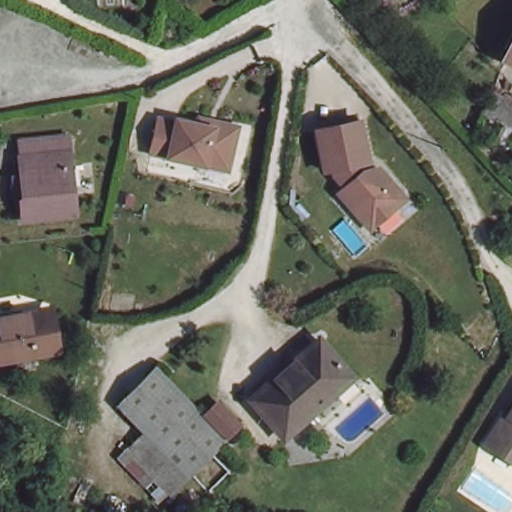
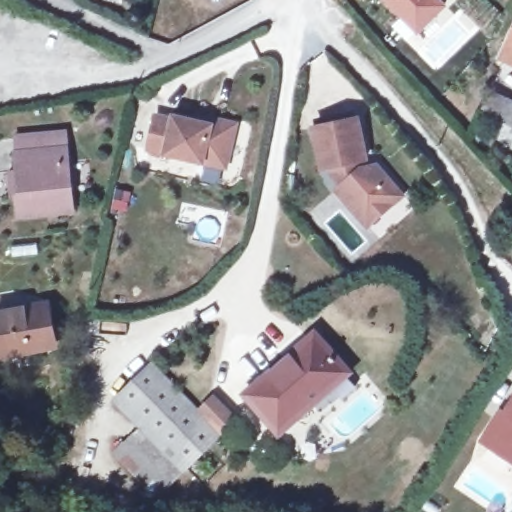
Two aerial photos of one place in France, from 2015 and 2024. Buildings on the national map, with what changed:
new [(448,7),(417,37),(382,0),(443,0),(442,1),(448,7)]
unchanged [(512,52),(512,65),(507,62),(512,52)]
unchanged [(493,96),(512,106),(512,144),(478,122),(493,96)]
unchanged [(173,117),(174,113),(195,119),(196,113),(211,117),(235,122),(227,157),(204,152),(202,160),(147,146),(155,112),(173,117)]
unchanged [(395,199),(366,224),(335,187),(341,182),(331,171),(330,165),(321,166),(313,126),(356,117),(365,158),(358,159),(360,167),(375,164),(386,177),(401,194),(395,199)]
unchanged [(70,144),(75,204),(21,206),(19,191),(25,191),(24,148),(70,144)]
unchanged [(50,307),(55,346),(0,352),(0,313),(50,307)]
unchanged [(249,400),(312,339),(343,369),(346,373),(282,438),(249,400)]
unchanged [(209,441),(176,473),(135,436),(105,408),(140,373),(209,441)]
unchanged [(202,397),(225,418),(211,435),(187,413),(202,397)]
unchanged [(503,414),(507,417),(512,409),(512,463),(483,444),(503,414)]
unchanged [(176,473),(160,491),(119,454),(135,436),(176,473)]

